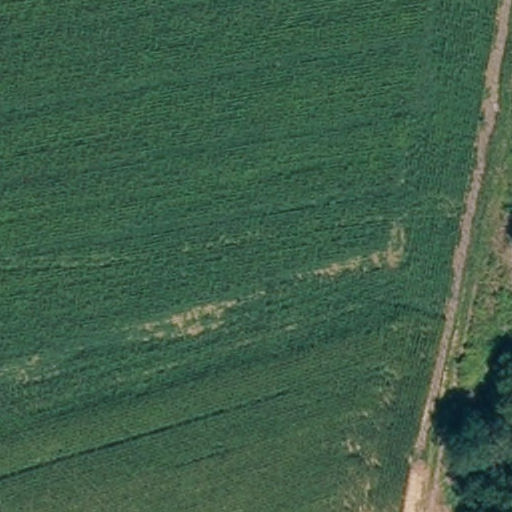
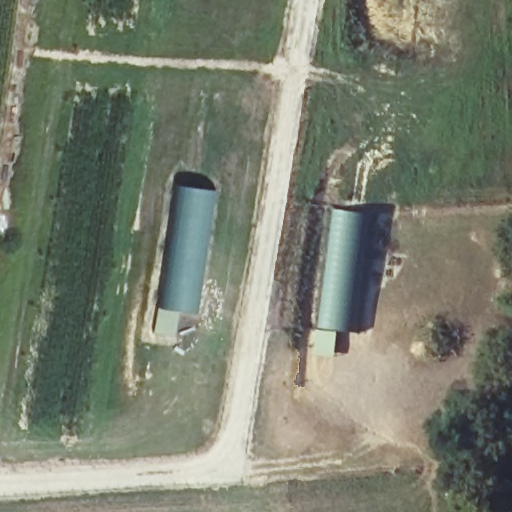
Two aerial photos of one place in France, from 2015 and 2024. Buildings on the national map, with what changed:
new [(164,306),(179,185),(207,188),(192,310),(164,306)]
new [(317,326),(332,207),(368,212),(355,331),(317,326)]

